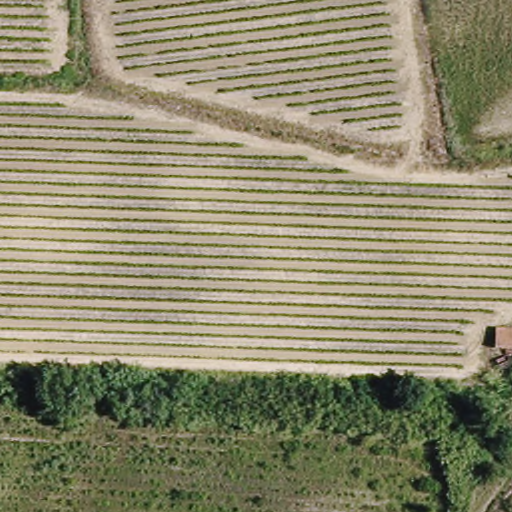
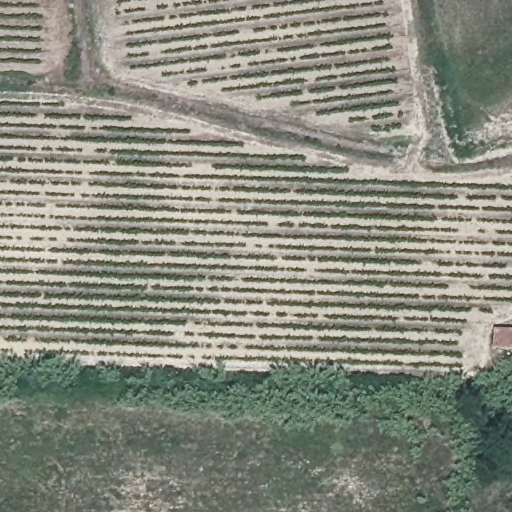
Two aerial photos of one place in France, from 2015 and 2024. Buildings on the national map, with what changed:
unchanged [(512,328),(512,352),(495,351),(499,325),(512,328)]

